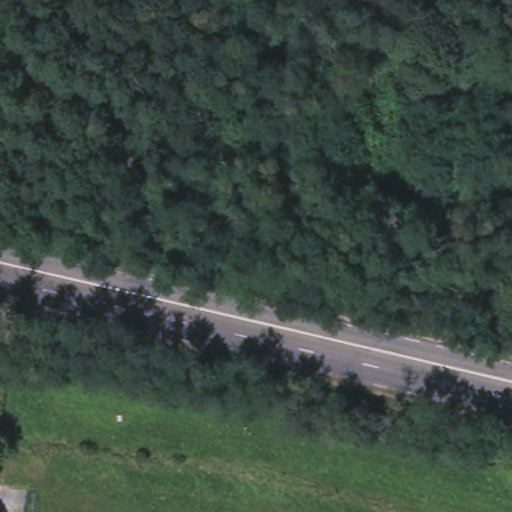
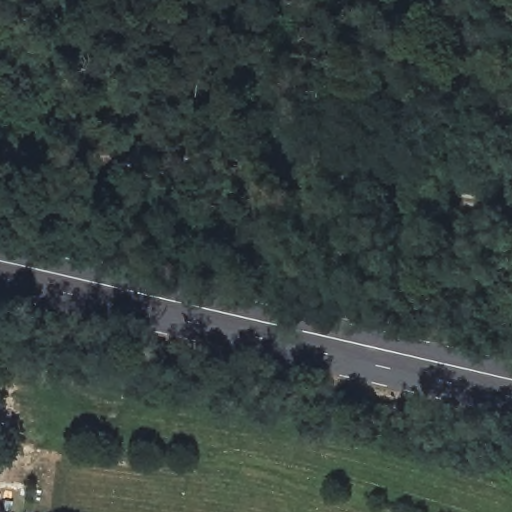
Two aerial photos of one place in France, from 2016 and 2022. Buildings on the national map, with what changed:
[]

